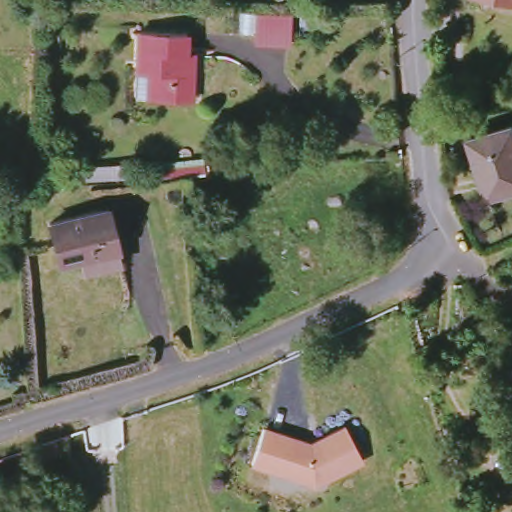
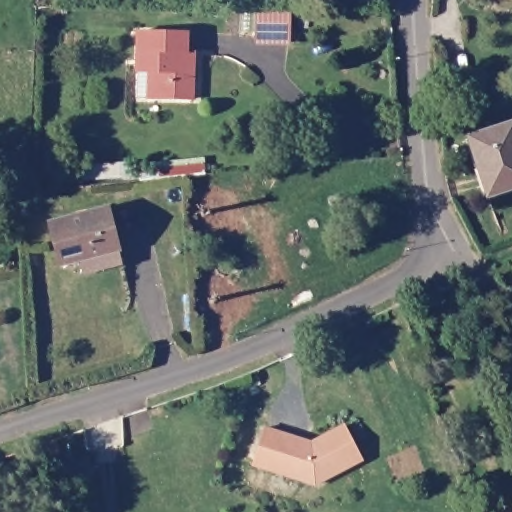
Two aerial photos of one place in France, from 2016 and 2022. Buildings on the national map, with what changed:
unchanged [(502,0),(512,0),(512,2),(502,0)]
unchanged [(288,41),(258,40),(259,11),(289,12),(288,41)]
unchanged [(157,95),(148,95),(148,65),(139,64),(139,27),(188,29),(187,61),(194,61),(193,94),(157,95)]
unchanged [(472,144),(512,127),(512,192),(494,200),(472,144)]
unchanged [(83,255),(60,261),(49,221),(108,206),(122,260),(88,270),(83,255)]
unchanged [(314,441),(349,423),(368,459),(320,487),(252,468),(267,426),(314,441)]

